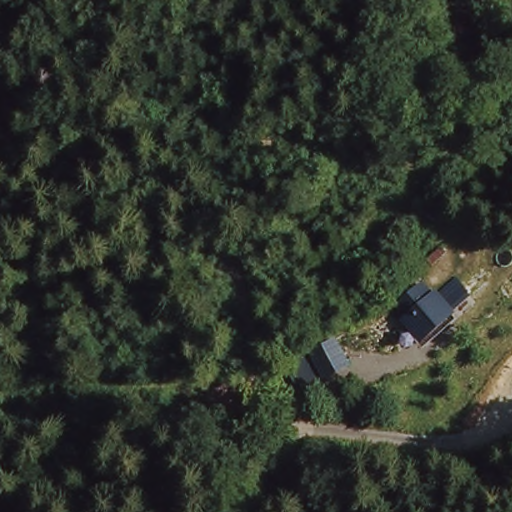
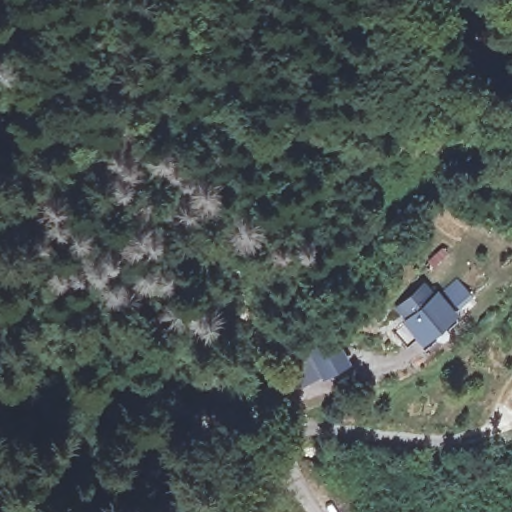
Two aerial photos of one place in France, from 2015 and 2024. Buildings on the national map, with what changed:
unchanged [(405,307),(428,288),(438,300),(440,298),(453,312),(442,322),(425,336),(412,321),(415,319),(405,307)]
unchanged [(338,340),(348,365),(325,373),(316,348),(338,340)]

